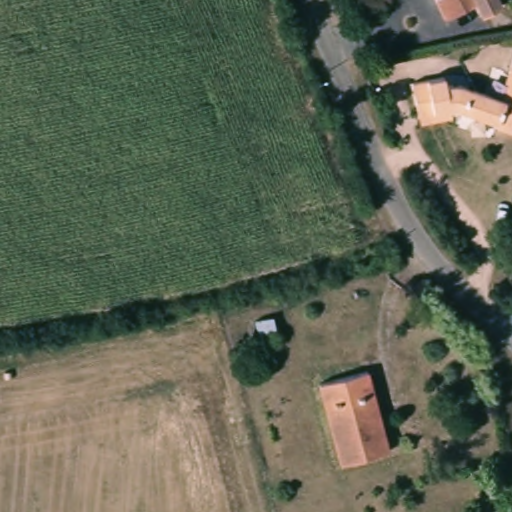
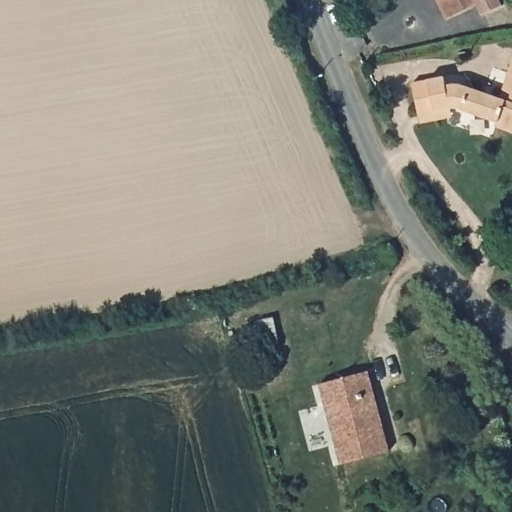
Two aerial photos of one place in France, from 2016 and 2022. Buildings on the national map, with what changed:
unchanged [(479,16),(474,4),(444,17),(436,0),(497,0),(500,7),(479,16)]
unchanged [(449,84),(461,82),(506,97),(512,79),(512,126),(454,109),(456,119),(422,125),(413,82),(447,75),(449,84)]
unchanged [(270,321),(277,346),(259,351),(252,326),(270,321)]
unchanged [(369,370),(391,452),(341,464),(320,383),(369,370)]

